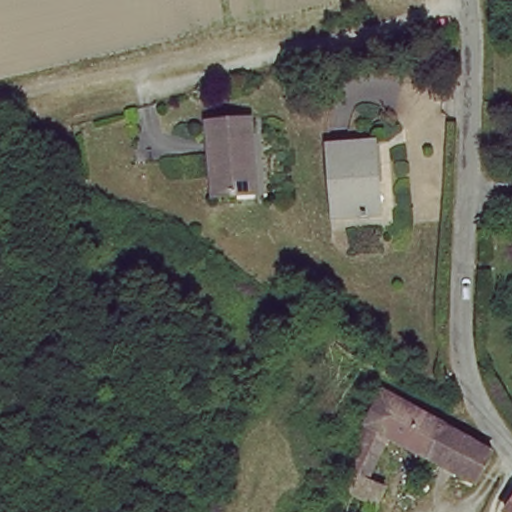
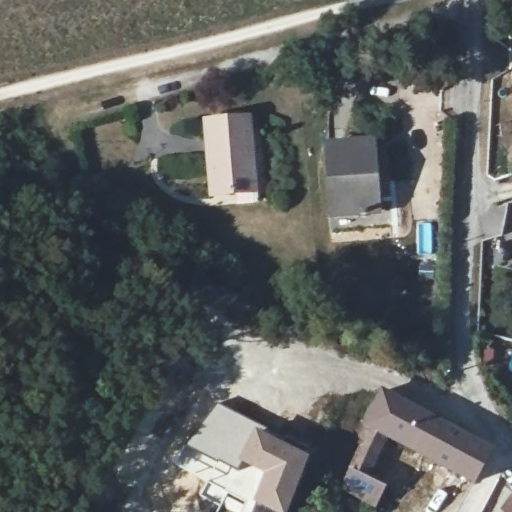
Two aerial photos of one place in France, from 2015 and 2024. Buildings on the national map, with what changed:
new [(512,78),(511,75),(512,75),(512,78)]
unchanged [(251,118),(260,188),(215,194),(206,122),(251,118)]
unchanged [(373,212),(340,217),(332,146),(379,141),(383,179),(387,211),(373,212)]
unchanged [(420,410),(407,441),(404,449),(390,442),(376,475),(393,482),(380,509),(342,488),(380,389),(420,410)]
new [(214,402),(250,421),(310,457),(287,512),(270,512),(250,502),(260,476),(238,464),(235,472),(186,445),(214,402)]
unchanged [(420,410),(496,454),(480,482),(407,441),(420,410)]
new [(512,498),(512,512),(502,512),(512,498)]
demolished [(512,510),(512,512),(511,512),(512,510)]

